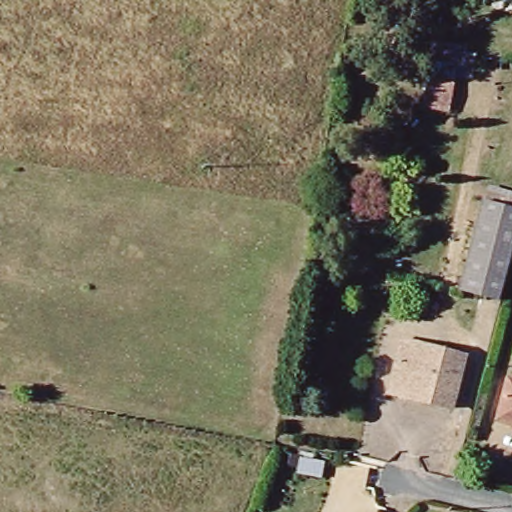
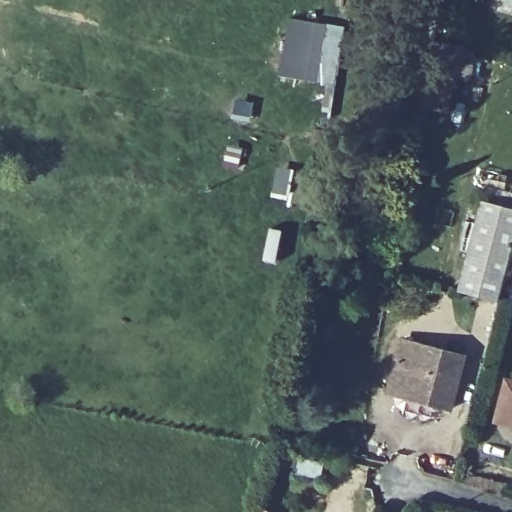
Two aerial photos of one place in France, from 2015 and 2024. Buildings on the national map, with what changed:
new [(339,86),(279,77),(289,16),(349,26),(339,86)]
unchanged [(420,107),(426,78),(435,39),(465,45),(465,51),(478,56),(471,81),(455,77),(453,83),(448,112),(420,107)]
unchanged [(512,201),(512,236),(497,294),(462,284),(486,194),(512,201)]
unchanged [(463,357),(451,405),(390,389),(402,341),(463,357)]
unchanged [(512,381),(512,424),(497,421),(507,380),(512,381)]

